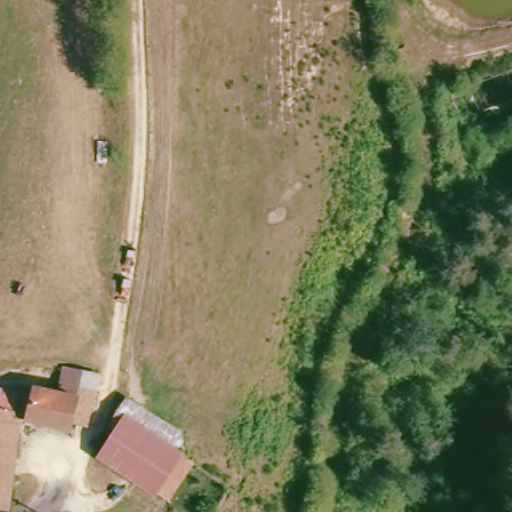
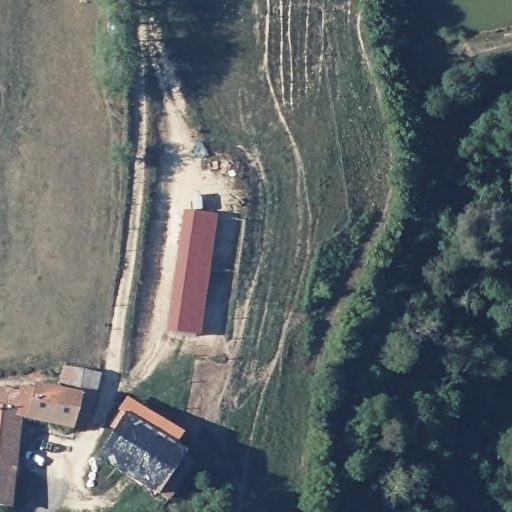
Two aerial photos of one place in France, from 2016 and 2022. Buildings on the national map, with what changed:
unchanged [(456,122),(445,97),(512,73),(512,101),(456,122)]
new [(215,216),(198,335),(165,330),(180,211),(215,216)]
unchanged [(22,393),(35,388),(64,391),(66,367),(103,376),(93,430),(78,415),(75,436),(31,425),(13,512),(8,512),(0,511),(0,398),(5,388),(22,393)]
unchanged [(172,499),(158,490),(157,494),(100,455),(125,417),(181,451),(195,460),(172,499)]

